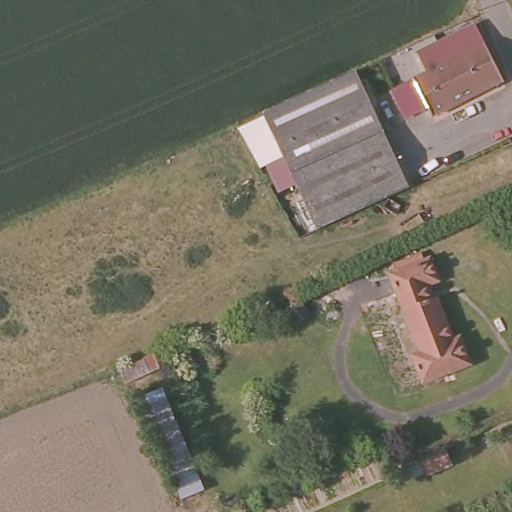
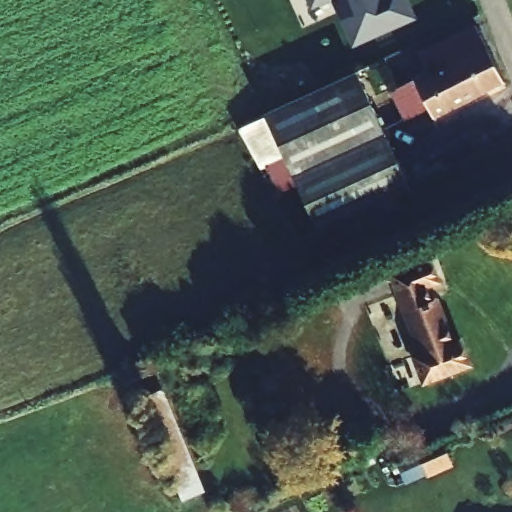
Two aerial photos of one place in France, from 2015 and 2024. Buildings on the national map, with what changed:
new [(311,0),(321,0),(313,4),(311,0)]
new [(354,41),(337,0),(403,0),(410,16),(354,41)]
unchanged [(461,107),(434,57),(474,37),(501,87),(461,107)]
unchanged [(416,129),(398,95),(424,82),(416,65),(434,57),(461,107),(416,129)]
unchanged [(356,74),(409,190),(315,233),(281,155),(264,116),(356,74)]
unchanged [(262,162),(281,155),(315,233),(298,242),(262,162)]
unchanged [(401,313),(389,285),(424,266),(435,288),(424,294),(427,302),(401,313)]
unchanged [(429,306),(435,305),(453,344),(460,342),(471,370),(427,392),(415,371),(424,366),(401,313),(427,302),(429,306)]
unchanged [(181,431),(214,495),(193,507),(141,408),(163,397),(181,431)]

